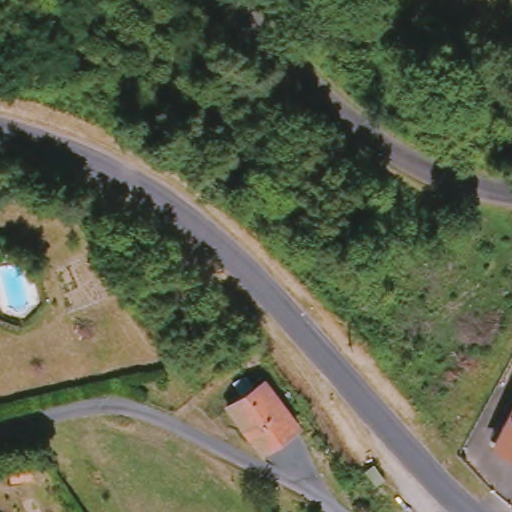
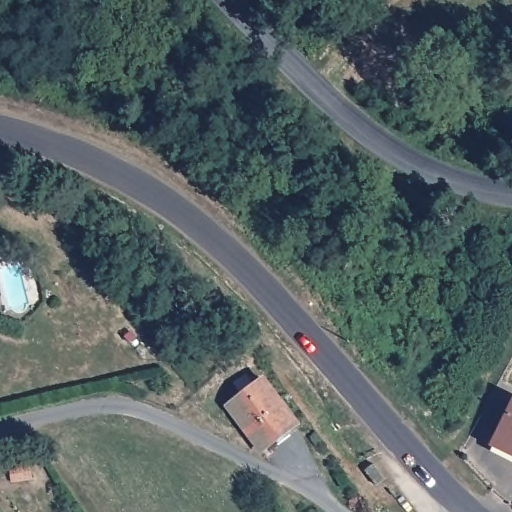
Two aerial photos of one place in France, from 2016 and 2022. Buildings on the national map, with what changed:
unchanged [(231,406),(267,377),(301,418),(265,447),(231,406)]
unchanged [(512,422),(512,451),(500,444),(512,422)]

